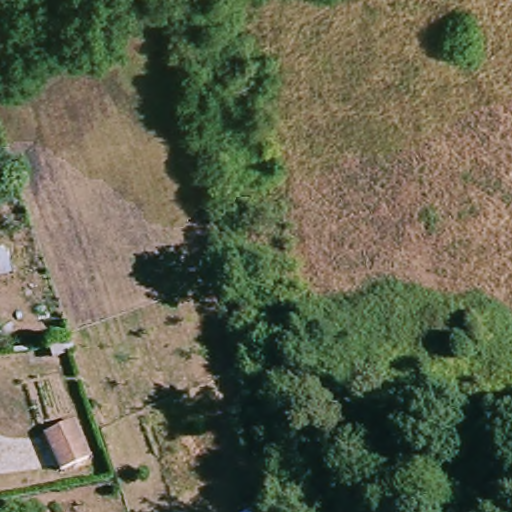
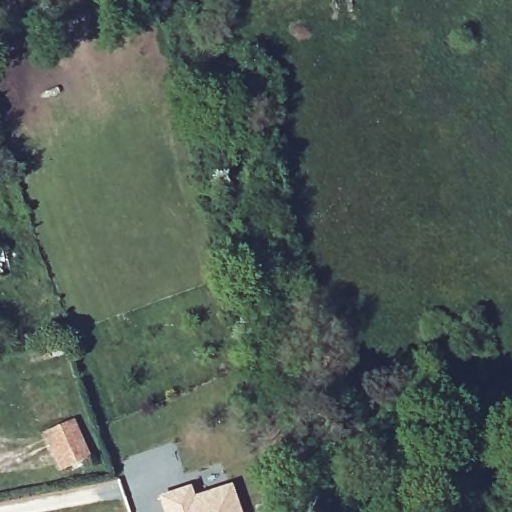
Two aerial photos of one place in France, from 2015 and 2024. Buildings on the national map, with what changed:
unchanged [(38,267),(0,282),(0,252),(28,243),(38,267)]
unchanged [(86,464),(58,473),(46,434),(76,426),(86,464)]
new [(190,484),(195,495),(231,482),(242,512),(161,512),(156,496),(190,484)]

